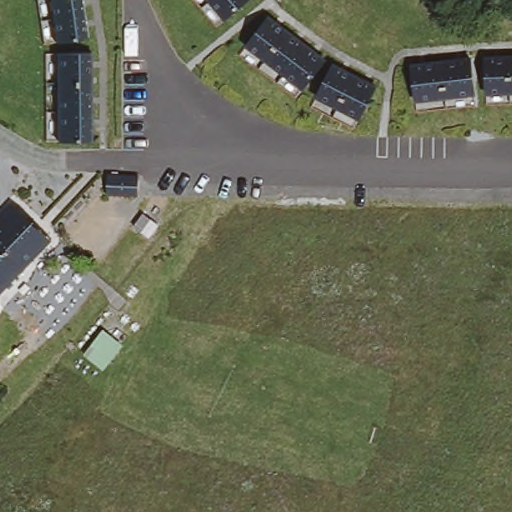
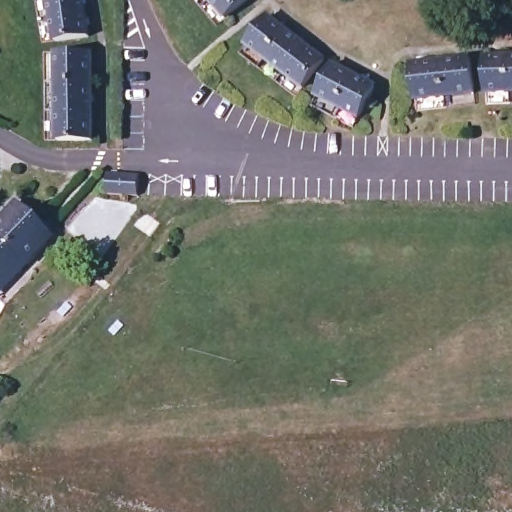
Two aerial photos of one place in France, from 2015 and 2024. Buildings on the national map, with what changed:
unchanged [(45,0),(77,0),(80,38),(50,41),(45,0)]
unchanged [(205,0),(243,0),(223,20),(205,0)]
unchanged [(241,44),(261,19),(317,60),(298,90),(241,44)]
unchanged [(51,57),(86,57),(86,143),(51,141),(51,57)]
unchanged [(512,59),(512,93),(480,95),(479,60),(512,59)]
unchanged [(406,65),(461,62),(464,97),(408,102),(406,65)]
unchanged [(311,99),(330,69),(370,89),(354,120),(311,99)]
unchanged [(9,212),(46,243),(0,293),(0,224),(9,212)]

